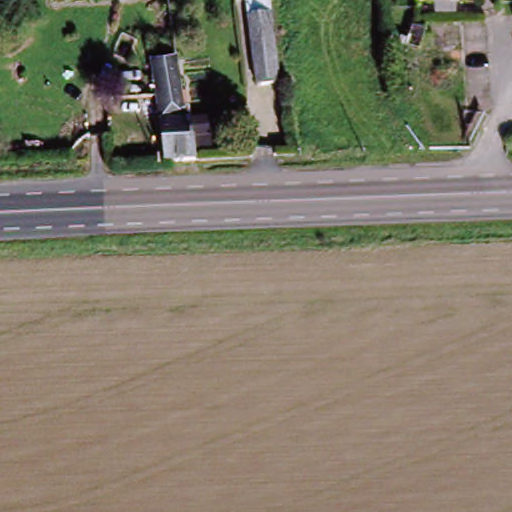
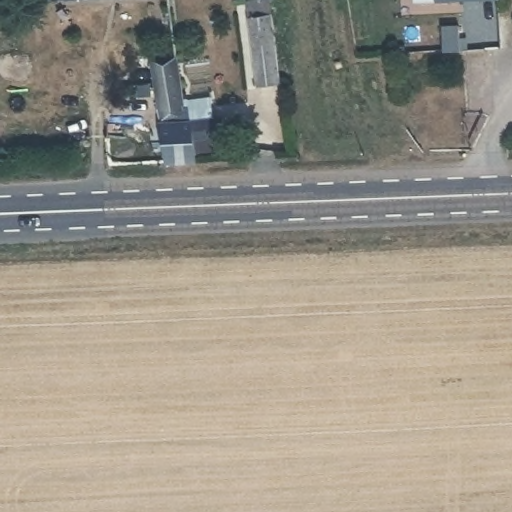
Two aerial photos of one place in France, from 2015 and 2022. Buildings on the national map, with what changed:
unchanged [(49,3),(48,0),(83,0),(49,3)]
unchanged [(249,20),(255,19),(250,0),(273,0),(276,19),(281,86),(259,91),(249,20)]
unchanged [(507,1),(487,1),(487,5),(419,2),(419,0),(507,0),(507,1)]
unchanged [(409,24),(420,32),(408,47),(398,40),(409,24)]
unchanged [(154,114),(149,72),(175,70),(180,111),(154,114)]
unchanged [(162,161),(160,129),(182,127),(210,124),(213,141),(185,144),(186,160),(162,161)]

